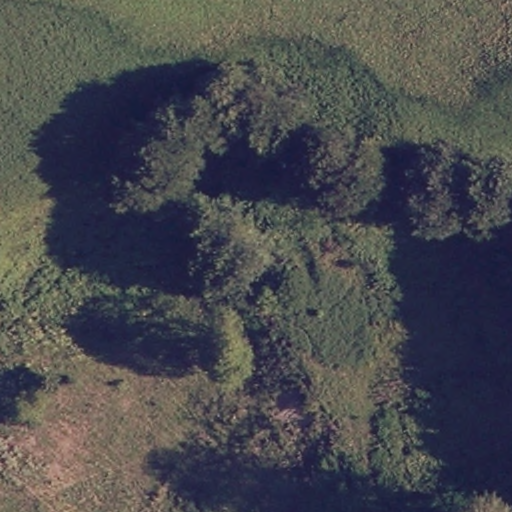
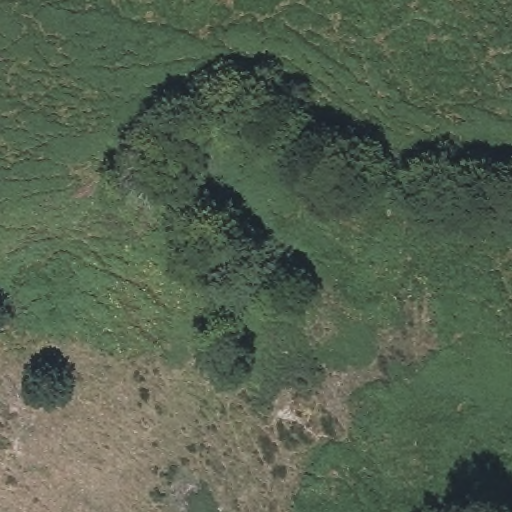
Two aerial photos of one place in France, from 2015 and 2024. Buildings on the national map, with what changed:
unchanged [(234,225),(257,255),(222,284),(201,256),(234,225)]

